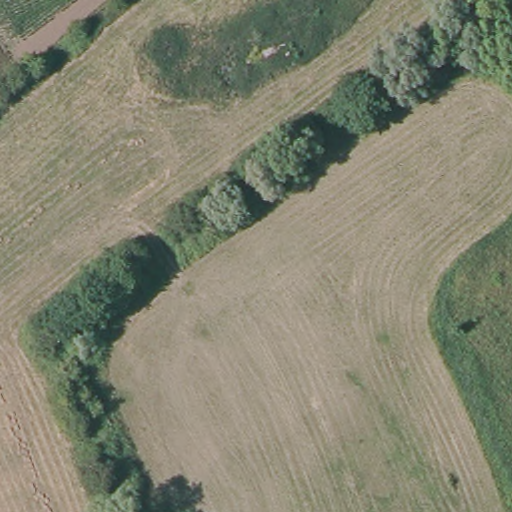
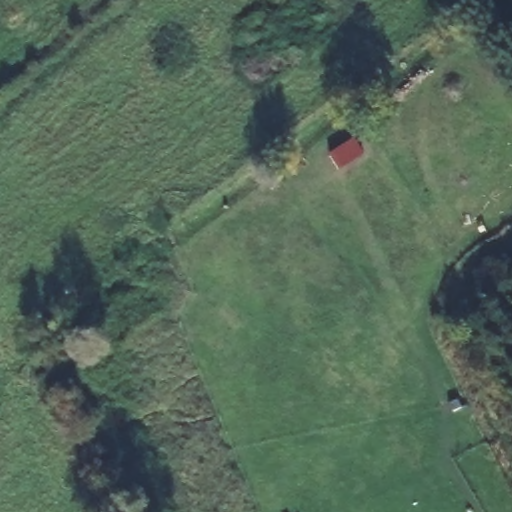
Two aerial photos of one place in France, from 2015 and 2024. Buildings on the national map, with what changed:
[]

